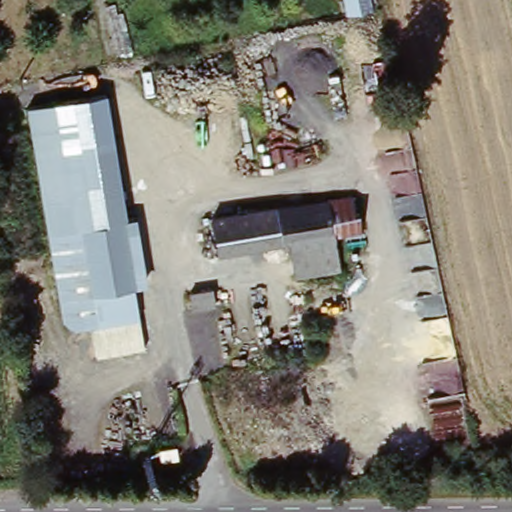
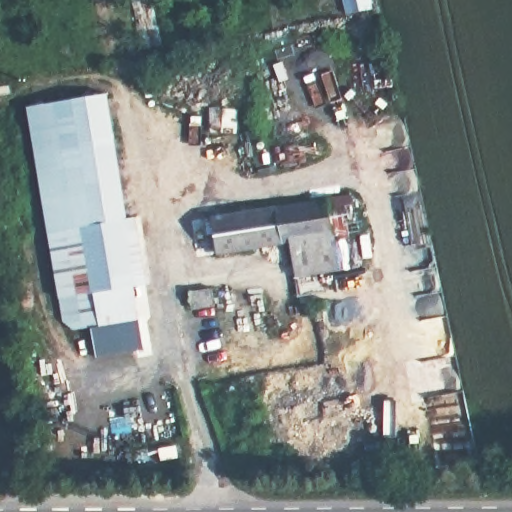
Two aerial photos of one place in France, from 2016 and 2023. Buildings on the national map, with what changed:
unchanged [(352,9),(350,0),(374,0),(374,5),(352,9)]
unchanged [(65,100),(104,92),(124,222),(85,230),(65,100)]
unchanged [(51,235),(28,105),(65,100),(85,230),(51,235)]
unchanged [(360,197),(364,234),(342,236),(346,271),(302,277),(298,242),(225,252),(220,216),(337,200),(360,197)]
unchanged [(141,323),(76,333),(65,325),(51,235),(85,230),(124,222),(141,323)]
unchanged [(214,303),(193,306),(189,288),(211,285),(214,303)]

